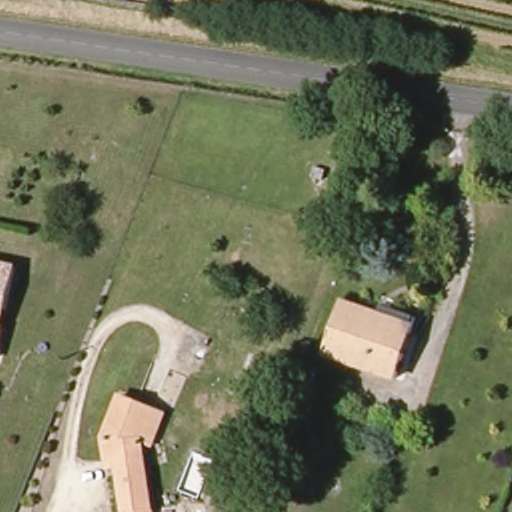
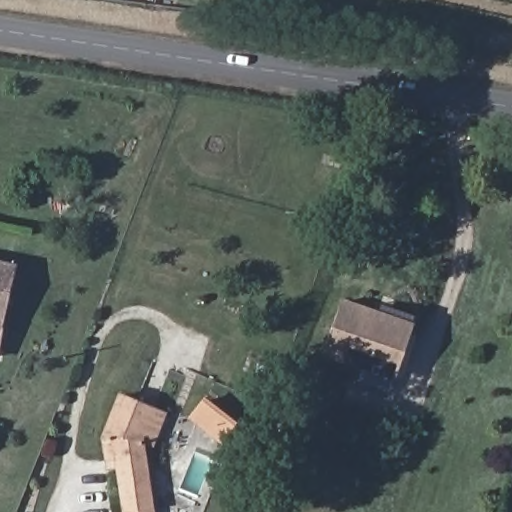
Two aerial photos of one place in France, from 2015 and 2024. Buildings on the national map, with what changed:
unchanged [(0,342),(0,266),(18,270),(0,342)]
unchanged [(326,353),(345,302),(380,314),(415,327),(405,353),(396,378),(326,353)]
new [(221,444),(190,417),(206,397),(240,423),(221,444)]
unchanged [(101,436),(113,399),(150,411),(165,415),(155,446),(140,441),(150,509),(133,512),(122,512),(116,468),(106,469),(105,460),(101,436)]

